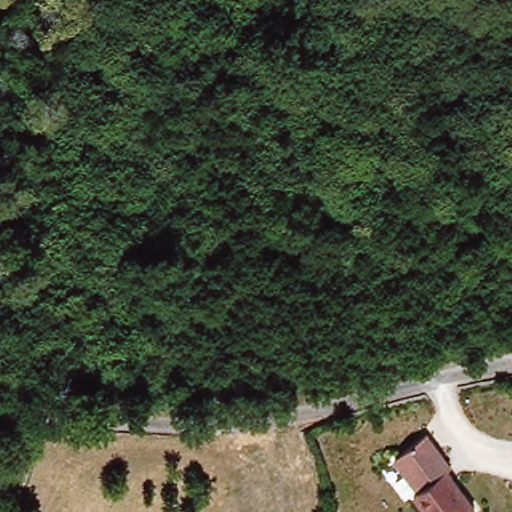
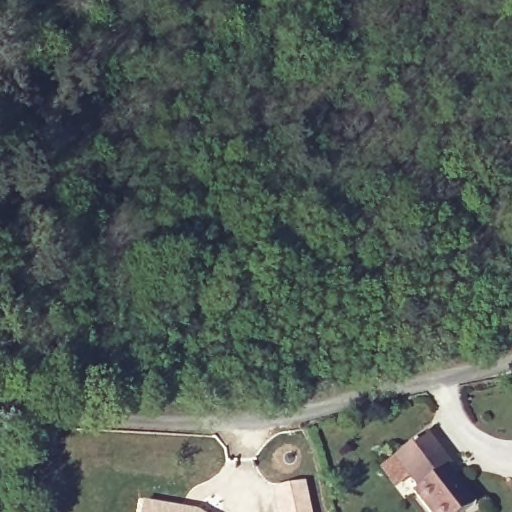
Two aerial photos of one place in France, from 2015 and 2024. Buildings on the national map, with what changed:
unchanged [(424,512),(412,493),(417,489),(395,456),(430,434),(451,466),(449,471),(473,509),(469,512),(424,512)]
new [(313,512),(276,512),(270,489),(306,480),(313,512)]
new [(199,511),(200,512),(140,512),(143,499),(199,511)]

